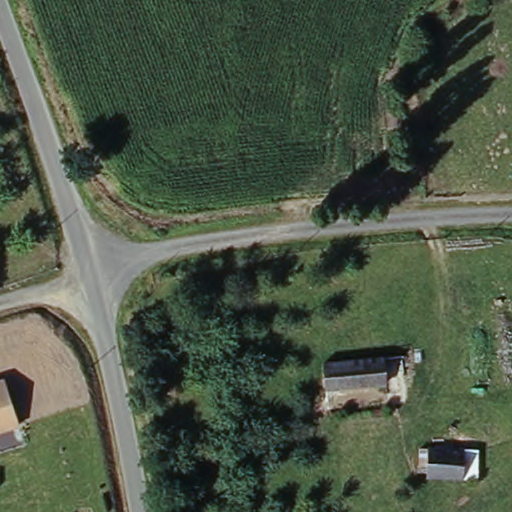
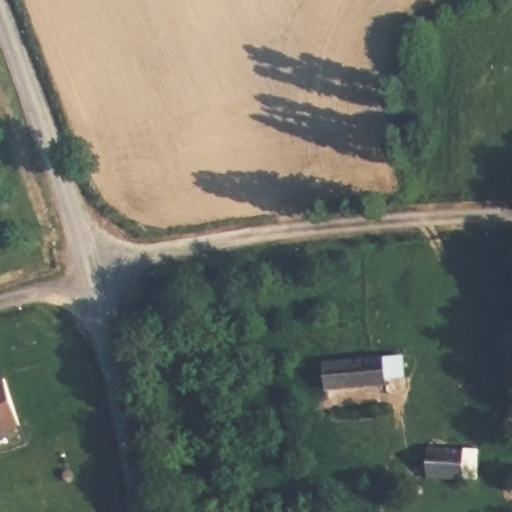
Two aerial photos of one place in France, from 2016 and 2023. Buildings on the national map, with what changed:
unchanged [(380,355),(384,382),(325,388),(321,360),(380,355)]
unchanged [(0,376),(9,373),(23,422),(0,430),(0,376)]
unchanged [(458,447),(460,476),(425,476),(426,447),(458,447)]

